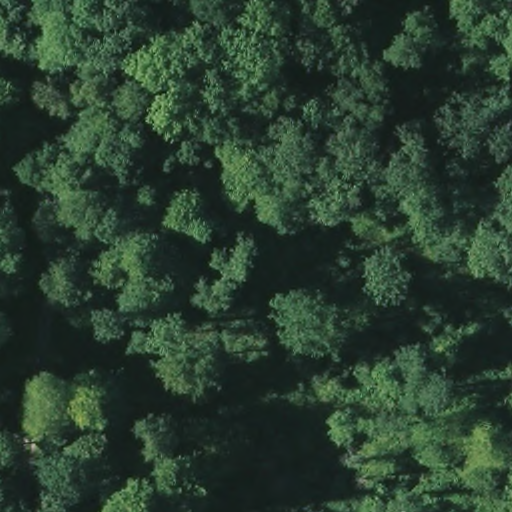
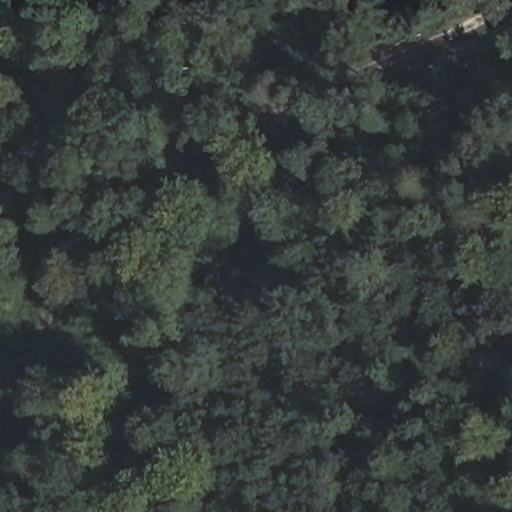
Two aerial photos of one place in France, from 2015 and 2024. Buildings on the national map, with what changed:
unchanged [(0,0),(52,0),(68,48),(0,58),(0,0)]

